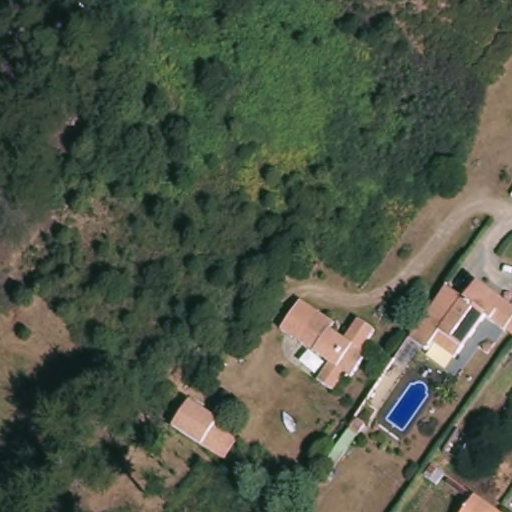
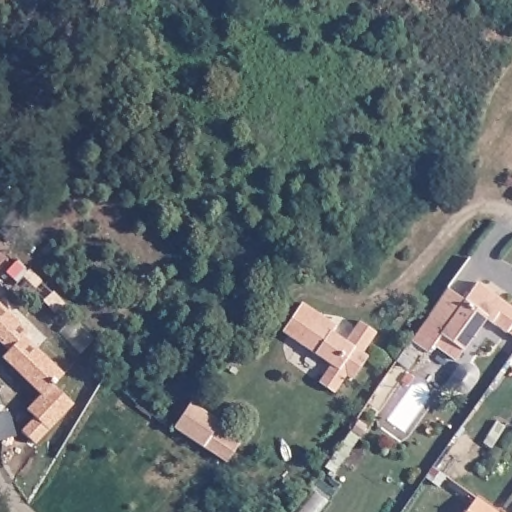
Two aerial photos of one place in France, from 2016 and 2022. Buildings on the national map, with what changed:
unchanged [(506,330),(505,330),(487,318),(457,359),(432,342),(426,351),(408,338),(445,288),(462,300),(475,282),(512,309),(512,334),(506,330)]
unchanged [(375,329),(363,348),(369,351),(355,375),(348,371),(337,390),(322,380),(332,361),(301,342),(282,330),(300,301),(335,323),(332,329),(346,338),(358,318),(375,329)]
new [(23,431),(36,418),(28,410),(42,396),(4,359),(10,351),(0,342),(0,307),(27,333),(22,338),(62,373),(52,385),(72,404),(36,441),(23,431)]
unchanged [(223,421),(219,427),(242,442),(229,465),(176,429),(194,401),(223,421)]
unchanged [(507,512),(462,512),(477,491),(479,493),(500,507),(507,512)]

